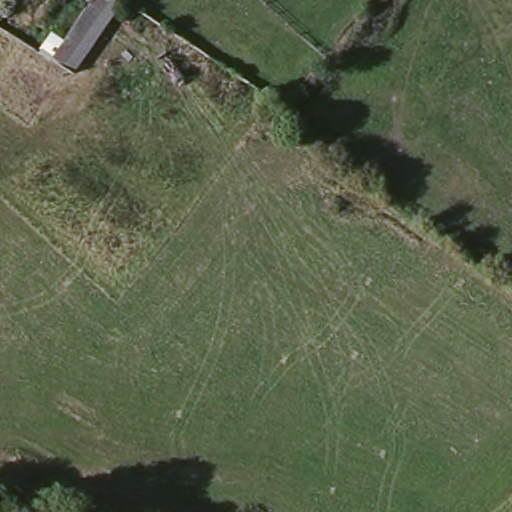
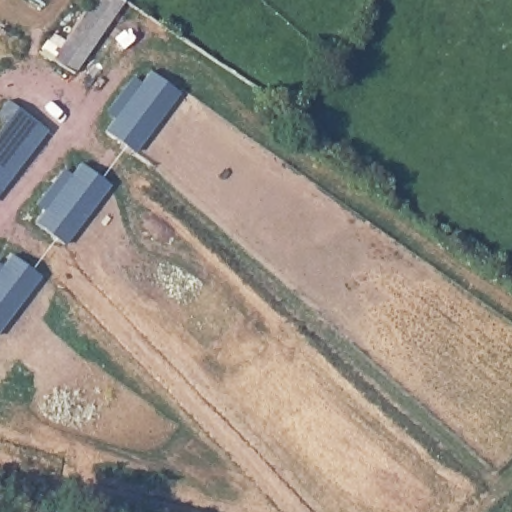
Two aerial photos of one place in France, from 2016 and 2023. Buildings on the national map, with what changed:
unchanged [(64,41),(92,0),(123,0),(72,73),(52,59),(50,61),(39,53),(52,34),(64,41)]
new [(180,95),(133,155),(104,134),(113,121),(106,115),(133,77),(141,83),(150,72),(180,95)]
new [(0,134),(7,126),(0,120),(0,115),(10,104),(47,133),(1,194),(0,194),(0,134)]
new [(39,226),(47,211),(39,206),(62,173),(72,179),(82,166),(112,189),(67,247),(39,226)]
new [(40,278),(0,330),(0,266),(2,267),(10,255),(40,278)]

